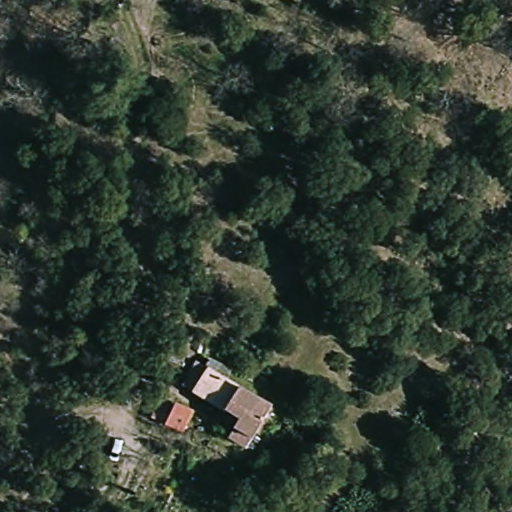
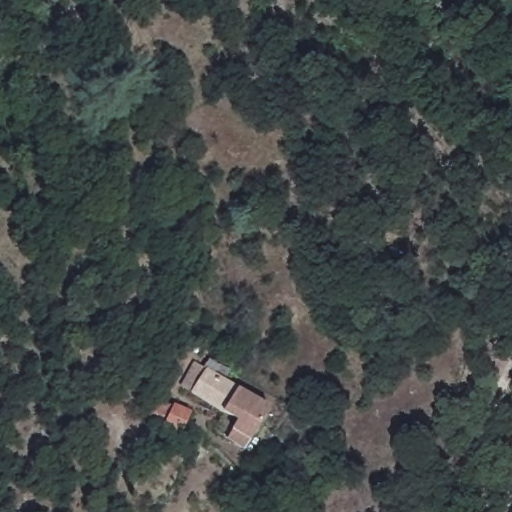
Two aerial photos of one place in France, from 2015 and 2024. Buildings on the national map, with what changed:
unchanged [(245,450),(225,437),(236,424),(220,412),(192,394),(183,388),(198,364),(207,372),(208,370),(236,388),(270,411),(245,450)]
unchanged [(165,428),(170,403),(185,412),(175,433),(165,428)]

